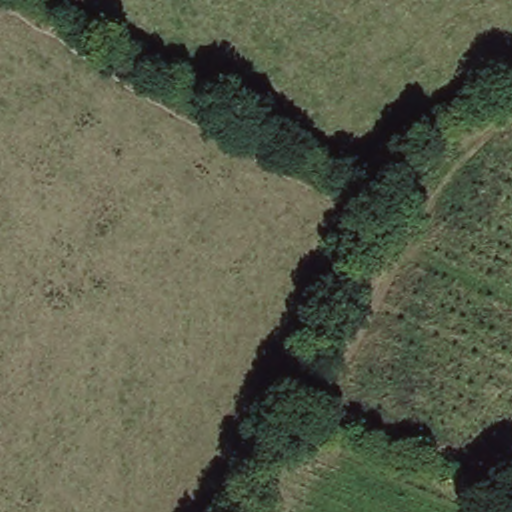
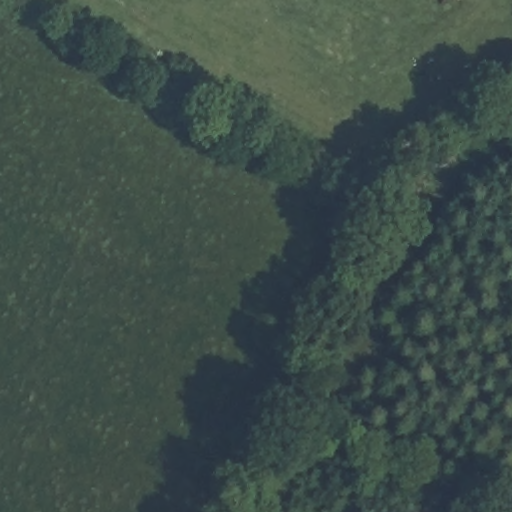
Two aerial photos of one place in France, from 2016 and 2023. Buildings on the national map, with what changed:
[]

